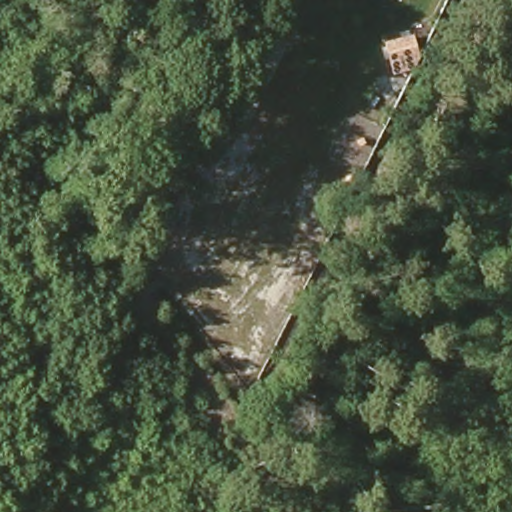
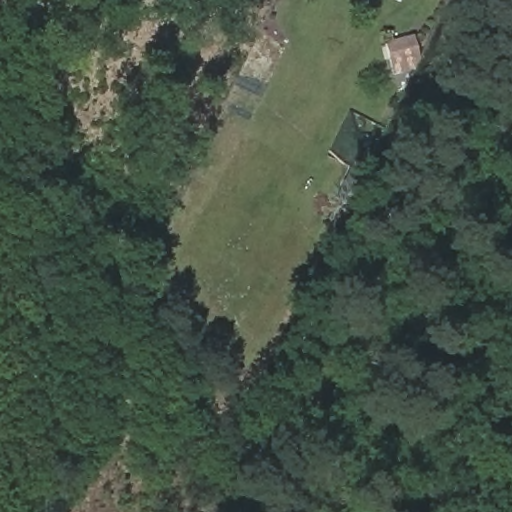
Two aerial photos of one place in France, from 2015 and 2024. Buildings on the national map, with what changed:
[]

